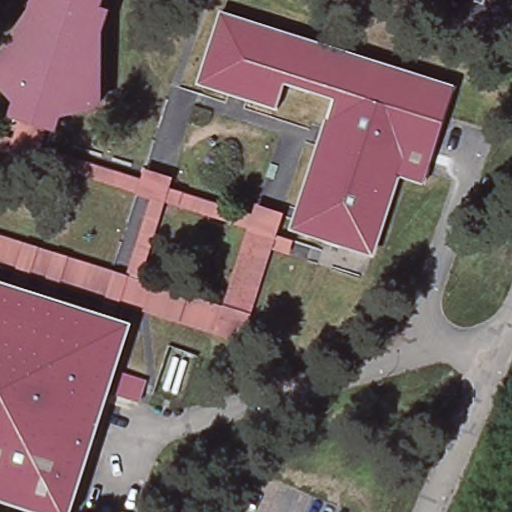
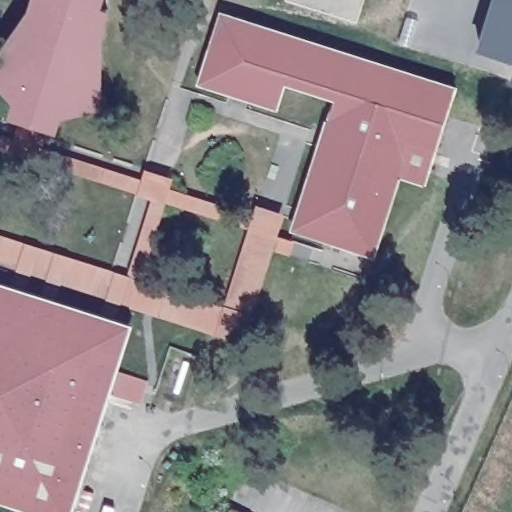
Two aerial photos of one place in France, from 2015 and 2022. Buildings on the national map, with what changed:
unchanged [(85,0),(90,1),(82,105),(62,115),(56,135),(0,118),(0,50),(30,2),(31,0),(85,0)]
new [(493,0),(512,0),(512,59),(478,49),(493,0)]
unchanged [(287,83),(279,106),(203,80),(223,15),(452,85),(422,185),(421,190),(393,182),(406,144),(328,118),(334,98),(287,83)]
unchanged [(406,144),(393,182),(372,254),(294,229),(328,118),(406,144)]
unchanged [(144,169),(176,179),(169,188),(254,216),(259,207),(284,216),(279,234),(292,242),(291,254),(279,251),(241,343),(0,264),(0,233),(127,274),(148,199),(0,151),(0,138),(140,176),(144,169)]
unchanged [(71,512),(34,512),(0,501),(0,282),(130,322),(71,512)]

